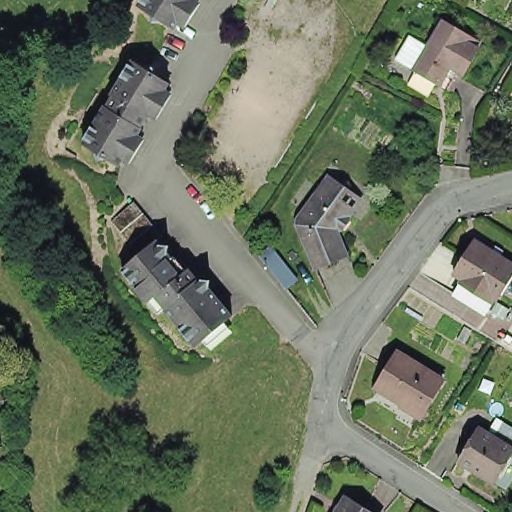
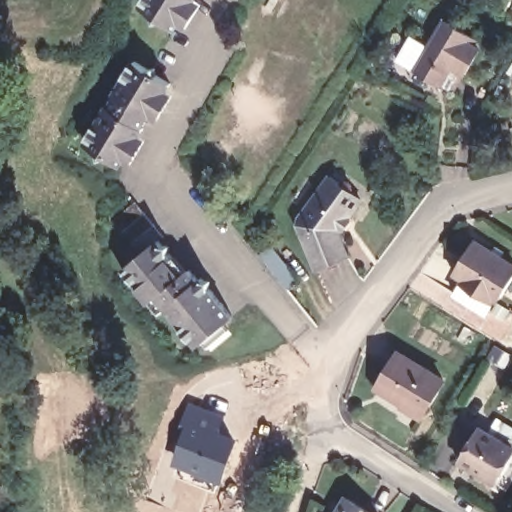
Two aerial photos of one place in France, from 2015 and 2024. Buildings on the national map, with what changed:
unchanged [(138,0),(189,0),(174,24),(138,0)]
unchanged [(447,10),(482,37),(478,42),(480,43),(447,85),(411,57),(447,10)]
unchanged [(123,165),(89,142),(91,140),(87,137),(95,125),(98,127),(112,106),(110,104),(117,92),(120,95),(130,77),(127,76),(135,63),(138,65),(141,61),(176,83),(123,165)]
unchanged [(298,225),(302,222),(297,210),(327,172),(339,181),(347,179),(350,189),(360,196),(349,211),(349,217),(343,226),(338,225),(337,228),(345,250),(312,262),(298,225)]
unchanged [(153,243),(137,256),(110,221),(133,202),(162,236),(157,241),(153,243)]
unchanged [(477,238),(512,260),(512,277),(500,297),(457,271),(477,238)]
unchanged [(147,297),(123,267),(137,256),(153,243),(157,241),(170,257),(167,261),(180,276),(188,269),(196,279),(200,276),(231,315),(194,346),(189,340),(187,342),(177,330),(178,329),(162,308),(159,311),(147,297)]
unchanged [(270,248),(297,282),(294,285),(287,290),(260,256),(267,251),(270,248)]
unchanged [(442,381),(421,416),(376,387),(397,353),(442,381)]
new [(171,466),(185,424),(193,401),(222,409),(217,431),(237,437),(220,483),(171,466)]
unchanged [(475,421),(512,443),(512,469),(503,483),(455,452),(475,421)]
unchanged [(375,512),(329,512),(342,488),(377,509),(375,512)]

